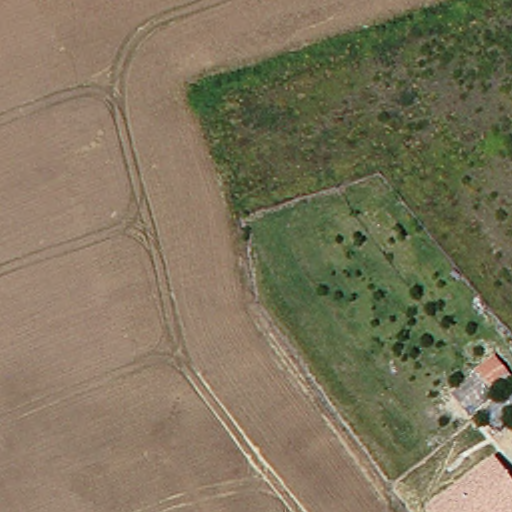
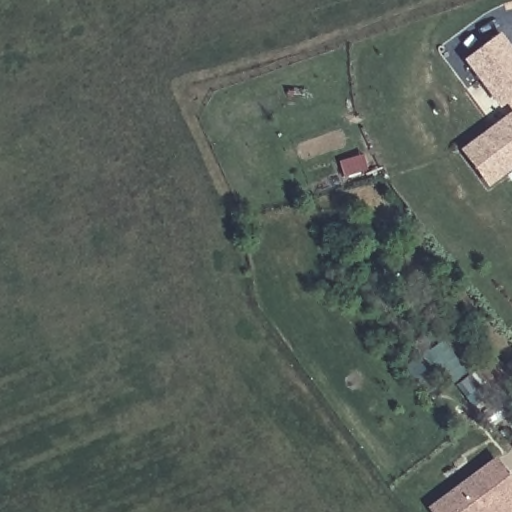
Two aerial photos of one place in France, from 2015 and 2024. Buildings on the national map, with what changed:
new [(489,189),(460,149),(511,111),(506,105),(500,110),(464,60),(500,32),(512,49),(512,171),(489,189)]
new [(512,378),(472,407),(455,387),(495,358),(512,378)]
unchanged [(497,458),(512,479),(512,512),(430,512),(428,507),(497,458)]

